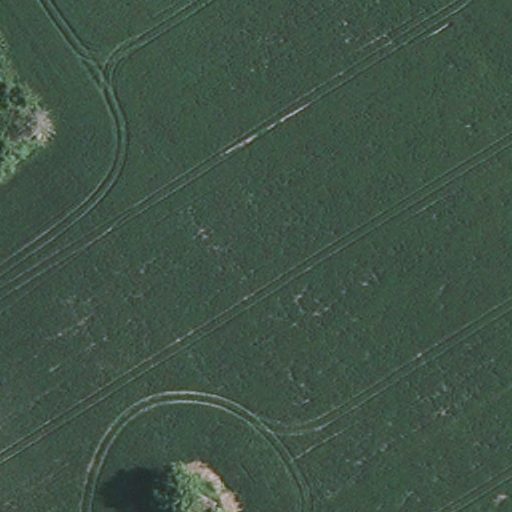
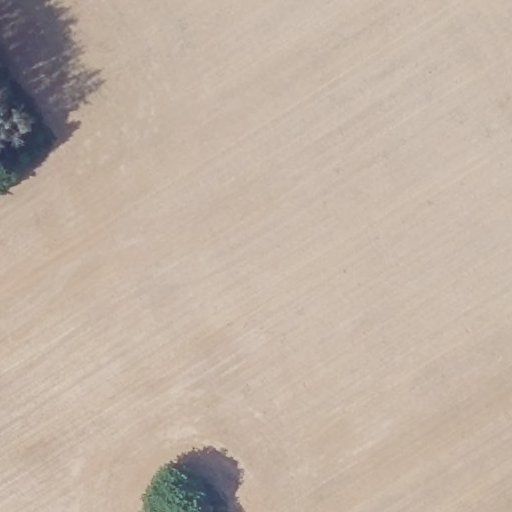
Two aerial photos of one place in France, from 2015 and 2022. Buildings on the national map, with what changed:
unchanged [(218,499),(213,512),(174,512),(184,486),(218,499)]

